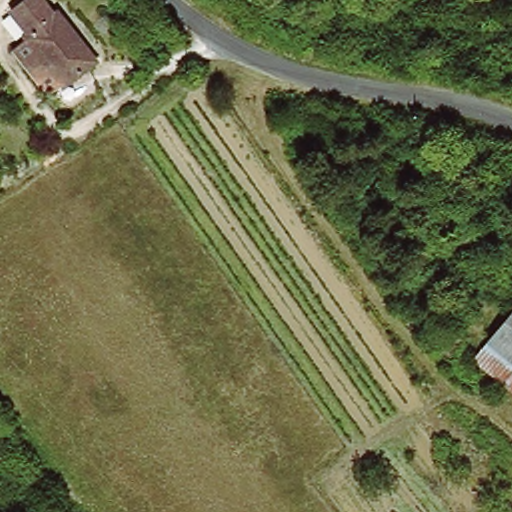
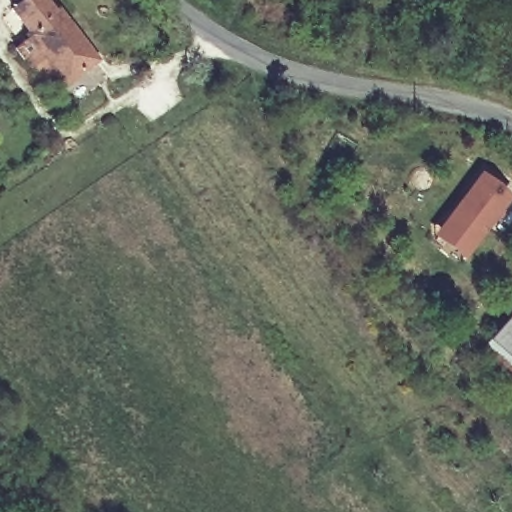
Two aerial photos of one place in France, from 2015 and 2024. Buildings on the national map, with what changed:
unchanged [(101,60),(48,94),(20,51),(36,40),(20,15),(41,0),(50,0),(64,21),(72,15),(101,60)]
new [(510,199),(460,263),(428,239),(478,172),(510,199)]
unchanged [(512,313),(512,385),(477,358),(512,313)]

